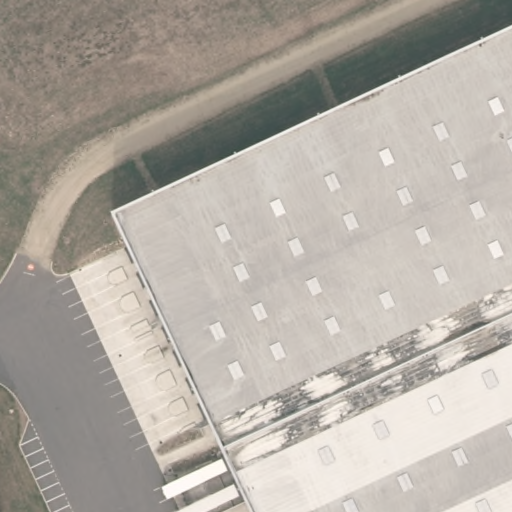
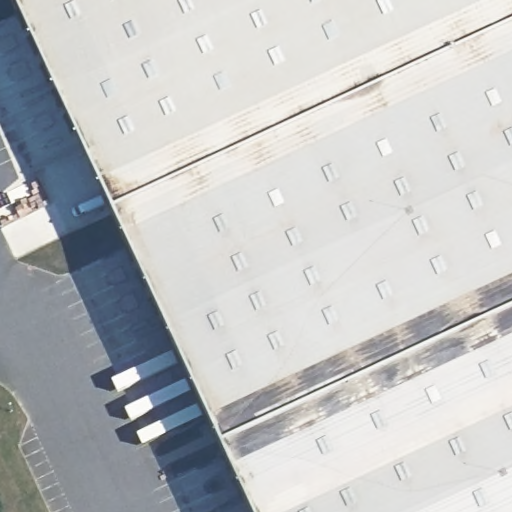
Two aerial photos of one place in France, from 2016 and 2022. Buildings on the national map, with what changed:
new [(12,0),(512,0),(512,29),(111,215),(12,0)]
unchanged [(111,215),(512,29),(512,512),(249,512),(111,215)]

